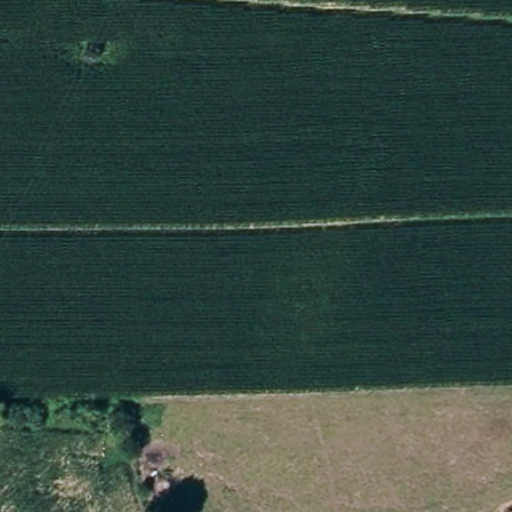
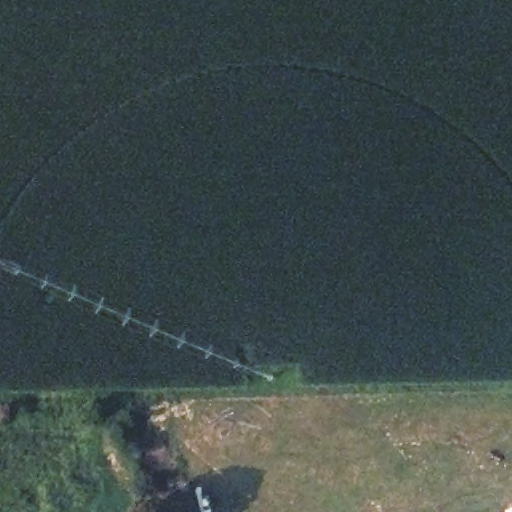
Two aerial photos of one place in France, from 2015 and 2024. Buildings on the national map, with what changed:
[]

